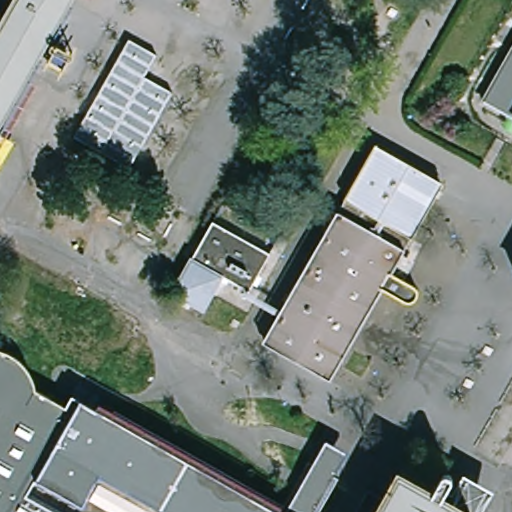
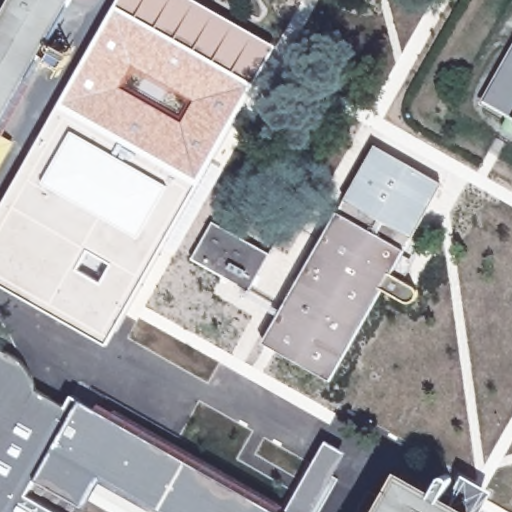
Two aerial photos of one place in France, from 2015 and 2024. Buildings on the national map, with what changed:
unchanged [(15,0),(69,0),(0,122),(0,26),(15,0)]
new [(118,0),(197,0),(277,45),(107,342),(0,284),(0,208),(118,0)]
demolished [(144,76),(173,91),(130,168),(74,137),(130,39),(157,53),(144,76)]
unchanged [(512,50),(512,120),(482,102),(512,50)]
unchanged [(365,311),(329,374),(326,381),(263,345),(276,322),(340,210),(378,142),(440,178),(390,267),(414,281),(415,282),(415,283),(416,284),(417,286),(418,287),(418,288),(417,291),(417,292),(417,293),(415,294),(415,295),(414,296),(412,297),(410,298),(409,298),(408,298),(407,298),(405,297),(403,296),(380,283),(365,311)]
unchanged [(215,220),(271,252),(248,291),(223,277),(192,259),(215,220)]
unchanged [(204,310),(174,292),(192,259),(223,277),(204,310)]
unchanged [(0,349),(8,352),(15,356),(23,362),(27,368),(31,375),(35,382),(36,389),(66,406),(76,389),(284,506),(280,512),(0,512),(0,349)]
unchanged [(326,442),(345,454),(312,512),(287,512),(326,442)]
unchanged [(396,476),(460,512),(376,512),(396,476)]

